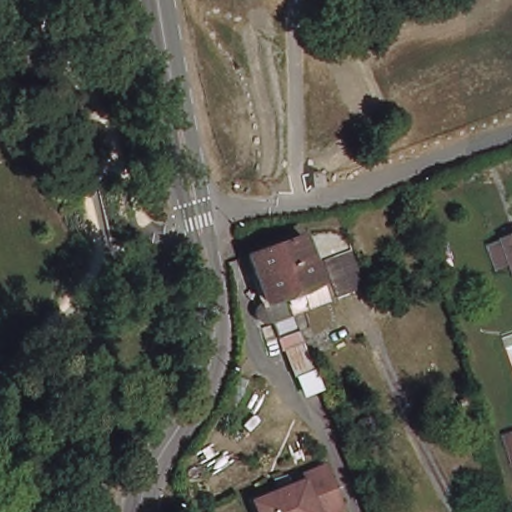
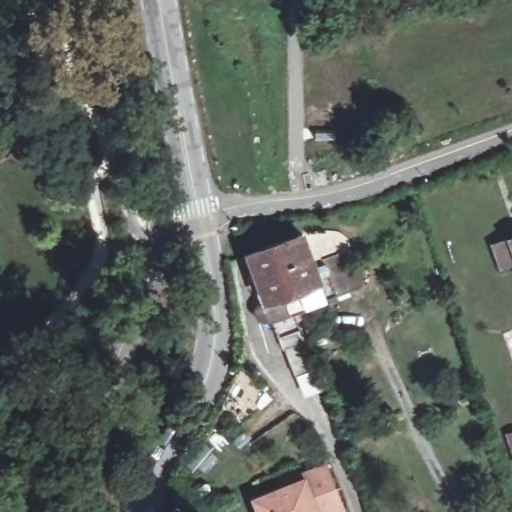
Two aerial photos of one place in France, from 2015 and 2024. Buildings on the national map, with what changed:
unchanged [(310,228),(337,227),(346,230),(351,235),(354,238),(370,281),(335,295),(310,228)]
unchanged [(291,375),(275,337),(284,333),(278,317),(271,320),(263,313),(263,309),(264,302),(258,304),(239,254),(310,228),(335,295),(296,310),(307,337),(298,341),(308,368),(291,375)]
unchanged [(511,234),(512,234),(512,238),(511,234)]
unchanged [(502,270),(494,251),(512,245),(512,267),(502,270)]
unchanged [(296,481),(318,467),(343,507),(335,512),(256,512),(299,486),(296,481)]

